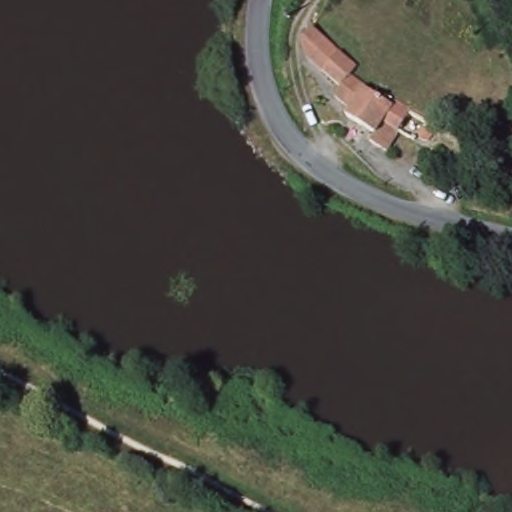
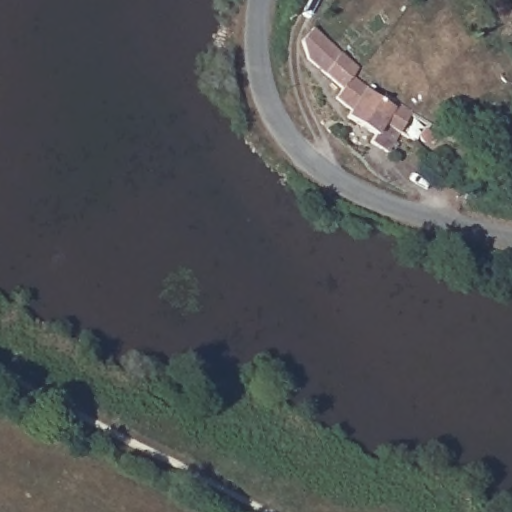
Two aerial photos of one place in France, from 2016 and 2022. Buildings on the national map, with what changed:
unchanged [(353,121),(347,116),(350,112),(335,103),(340,93),(310,71),(305,54),(312,40),(353,73),(350,79),(370,93),(388,105),(392,99),(410,110),(384,149),(367,140),(371,134),(353,121)]
unchanged [(434,117),(445,124),(450,134),(442,147),(433,139),(424,148),(418,144),(434,117)]

